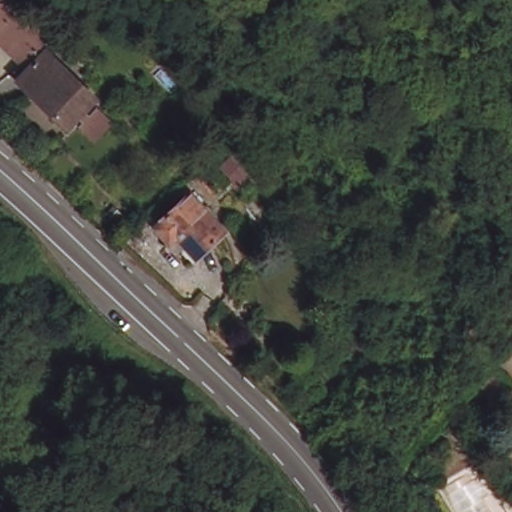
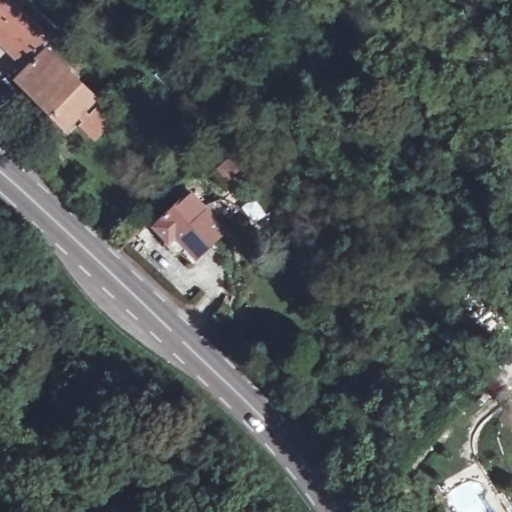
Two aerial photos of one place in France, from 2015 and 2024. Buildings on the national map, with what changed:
unchanged [(18,28),(39,49),(20,69),(0,49),(0,0),(4,0),(25,21),(18,28)]
unchanged [(92,118),(95,120),(105,131),(91,145),(80,134),(77,132),(82,128),(75,122),(65,132),(15,81),(43,53),(93,104),(82,115),(88,121),(92,118)]
unchanged [(198,194),(230,232),(200,257),(182,235),(173,242),(160,226),(198,194)]

